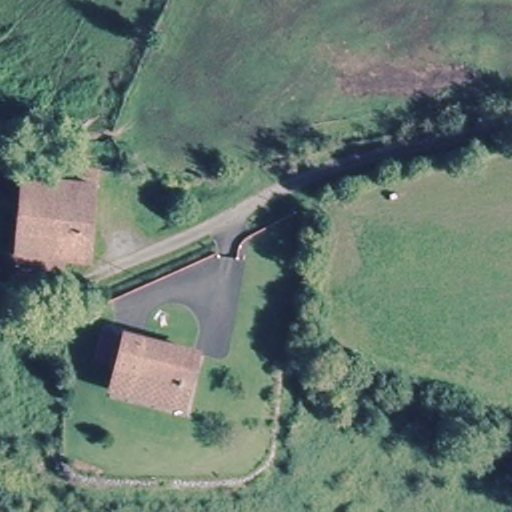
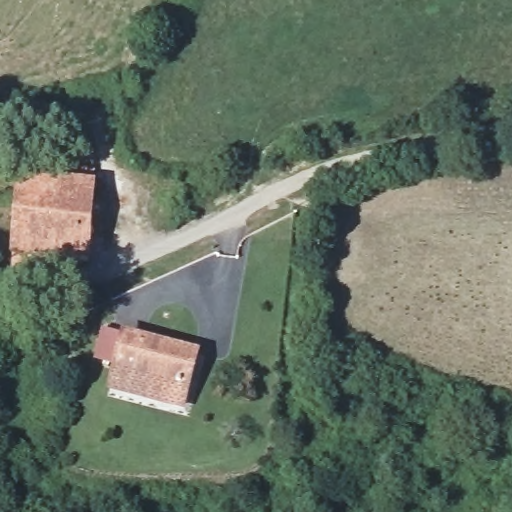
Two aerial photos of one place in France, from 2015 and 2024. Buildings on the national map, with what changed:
unchanged [(7,284),(8,277),(9,262),(14,176),(66,179),(71,167),(93,172),(86,262),(57,266),(57,282),(7,284)]
unchanged [(108,390),(118,334),(177,346),(193,349),(187,379),(181,406),(108,390)]

